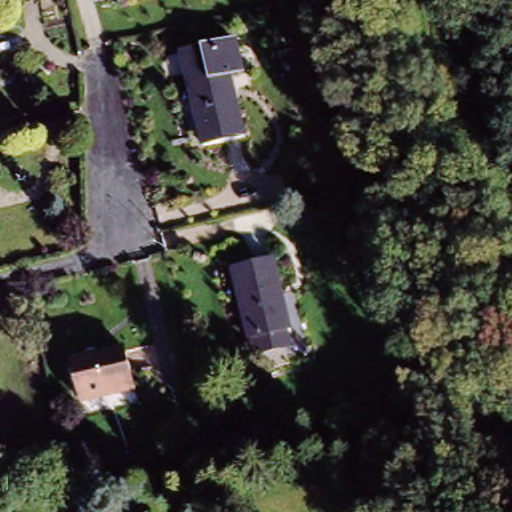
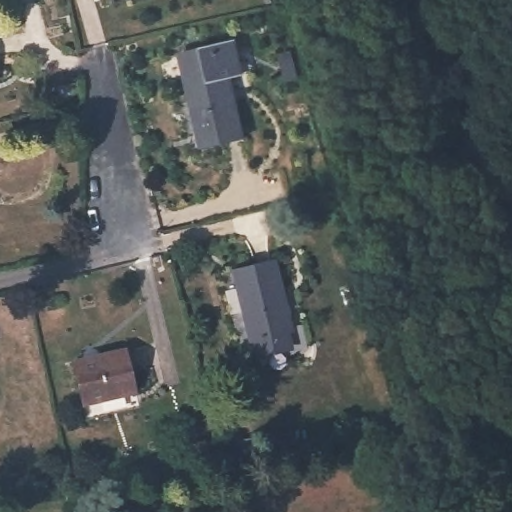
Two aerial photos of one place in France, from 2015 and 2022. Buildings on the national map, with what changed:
unchanged [(179,57),(231,42),(240,74),(226,77),(186,87),(179,57)]
unchanged [(226,77),(242,140),(203,151),(186,87),(226,77)]
unchanged [(240,270),(280,260),(297,332),(257,342),(240,270)]
unchanged [(78,367),(130,353),(140,393),(88,407),(78,367)]

